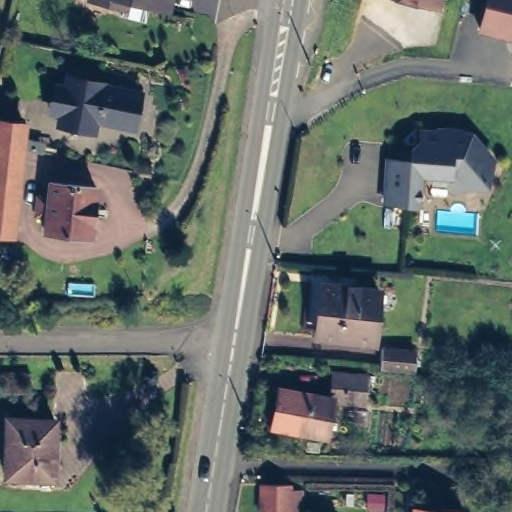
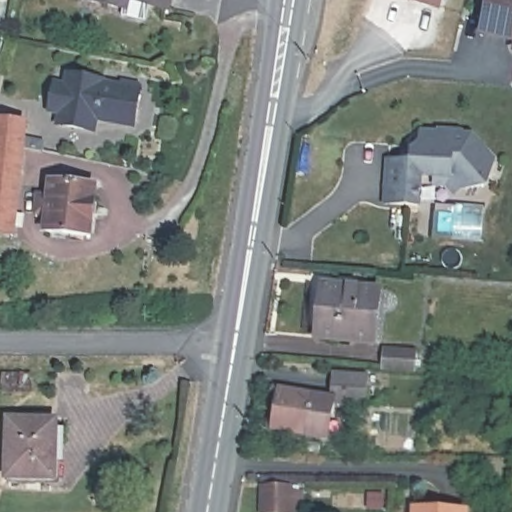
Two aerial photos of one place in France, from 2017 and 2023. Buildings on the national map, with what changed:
unchanged [(132,6),(134,0),(132,0),(155,0),(152,10),(132,6)]
unchanged [(176,4),(159,0),(177,0),(176,4)]
unchanged [(437,8),(420,4),(405,0),(439,0),(437,8)]
unchanged [(480,30),(487,0),(512,0),(512,38),(480,30)]
unchanged [(107,79),(106,81),(145,88),(139,123),(102,115),(99,128),(63,121),(65,109),(55,106),(60,81),(71,83),(74,72),(107,79)]
unchanged [(0,124),(30,126),(28,148),(19,238),(0,236),(0,124)]
unchanged [(452,184),(439,183),(440,175),(424,174),(422,204),(390,202),(393,160),(424,162),(426,132),(444,133),(444,131),(465,132),(465,134),(475,135),(497,160),(490,183),(466,188),(460,192),(452,184)]
unchanged [(98,180),(95,231),(49,227),(50,207),(43,206),(44,198),(52,198),(54,176),(98,180)]
unchanged [(132,287),(103,286),(104,263),(132,264),(132,287)]
unchanged [(317,337),(323,286),(377,291),(372,343),(317,337)]
unchanged [(9,310),(0,308),(0,295),(22,299),(20,310),(19,312),(9,310)]
unchanged [(382,368),(384,348),(415,351),(413,371),(382,368)]
unchanged [(365,405),(332,402),(327,438),(272,428),(280,390),(331,398),(335,373),(367,375),(365,405)]
unchanged [(62,476),(17,475),(19,420),(64,422),(62,476)]
unchanged [(299,512),(268,512),(270,486),(298,487),(299,512)]

